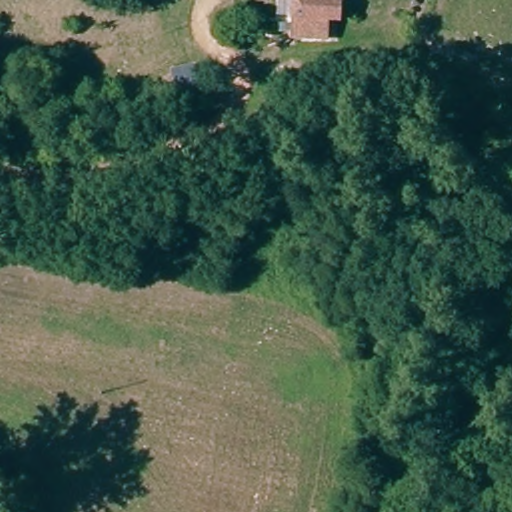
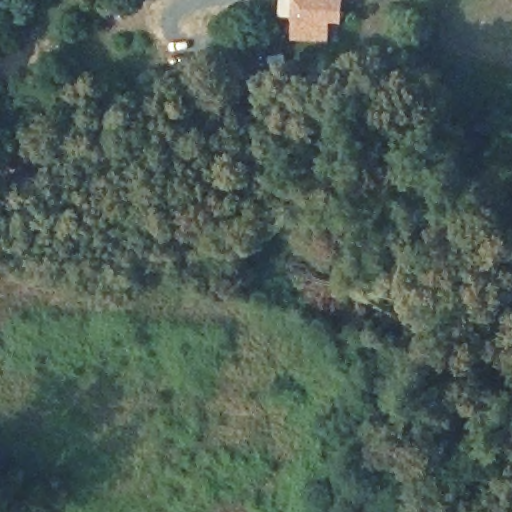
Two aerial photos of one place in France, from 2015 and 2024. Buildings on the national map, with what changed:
unchanged [(300,42),(300,31),(291,31),(294,0),(317,0),(340,2),(338,32),(337,41),(300,42)]

